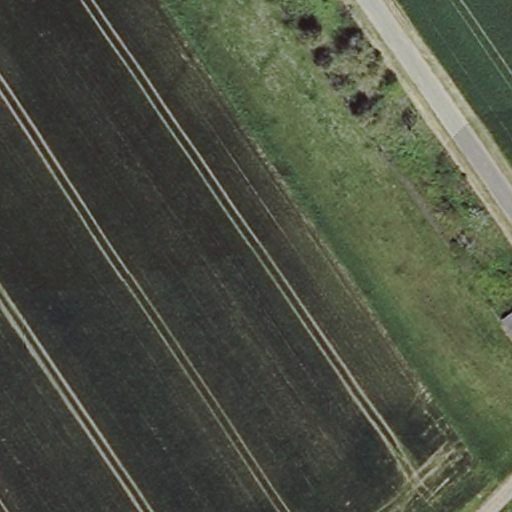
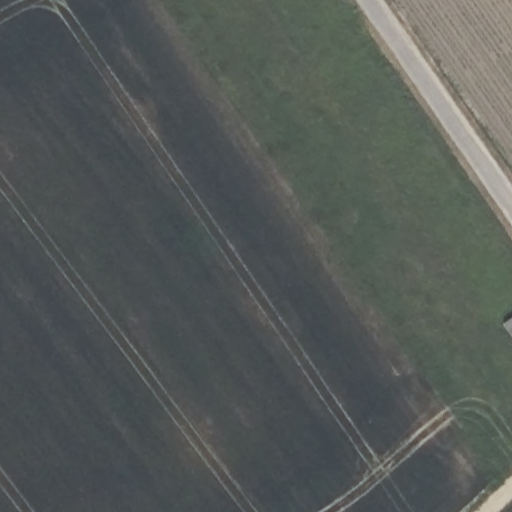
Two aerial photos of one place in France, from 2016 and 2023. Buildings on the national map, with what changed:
unchanged [(512,337),(503,325),(512,319),(512,337)]

